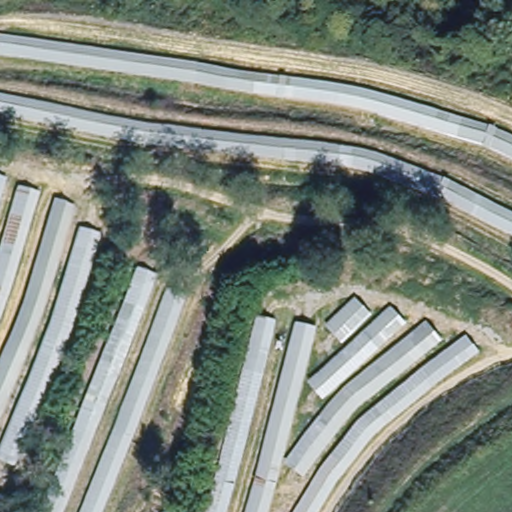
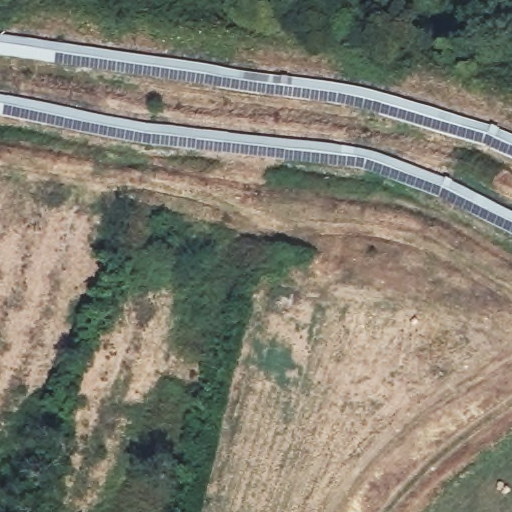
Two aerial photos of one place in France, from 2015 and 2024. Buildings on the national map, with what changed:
unchanged [(356,84),(491,124),(512,133),(512,158),(485,146),(355,106),(284,97),(0,54),(0,34),(211,63),(356,84)]
unchanged [(148,122),(356,148),(349,166),(144,144),(0,113),(0,94),(148,122)]
unchanged [(356,148),(512,212),(512,235),(349,166),(356,148)]
demolished [(45,181),(45,192),(90,201),(80,227),(0,421),(0,174),(45,181)]
demolished [(104,235),(69,351),(20,465),(0,456),(0,421),(77,232),(80,227),(104,235)]
demolished [(98,512),(38,512),(125,282),(182,296),(98,512)]
demolished [(440,377),(392,410),(338,467),(310,512),(203,512),(258,315),(330,325),(337,297),(365,298),(353,335),(403,300),(422,324),(432,315),(449,345),(464,340),(474,355),(440,377)]

